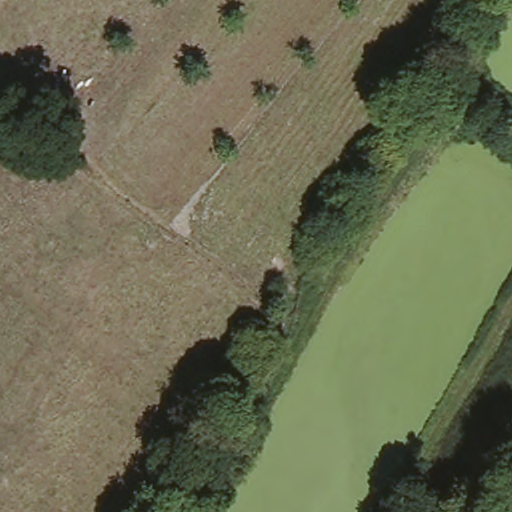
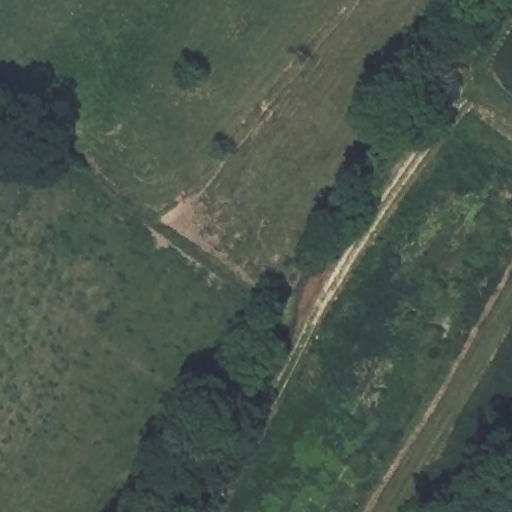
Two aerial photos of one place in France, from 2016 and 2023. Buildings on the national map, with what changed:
[]

